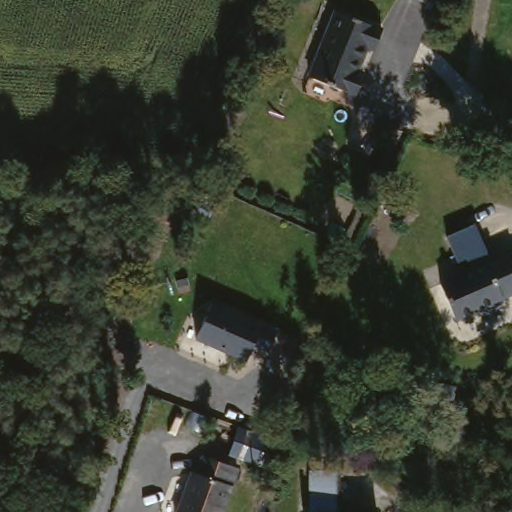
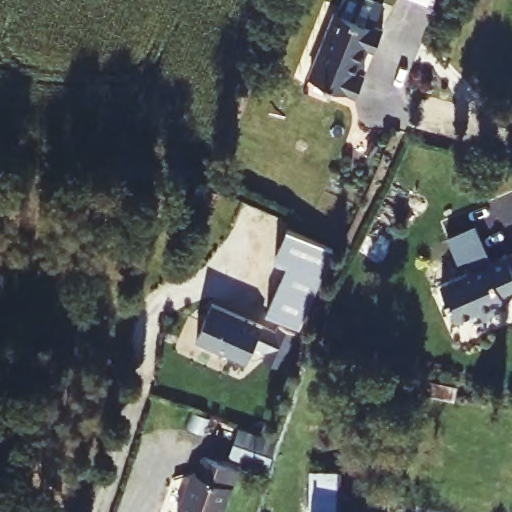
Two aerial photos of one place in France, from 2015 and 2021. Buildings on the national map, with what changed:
unchanged [(351,71),(357,73),(349,92),(303,71),(332,8),(377,28),(370,46),(362,43),(351,71)]
unchanged [(445,236),(472,224),(490,259),(463,275),(445,236)]
new [(289,262),(276,255),(287,228),(336,247),(302,326),(267,312),(289,262)]
unchanged [(504,296),(502,303),(501,305),(503,310),(487,319),(481,308),(459,321),(440,288),(503,252),(512,247),(512,291),(504,296)]
unchanged [(212,301),(260,321),(277,330),(270,351),(254,345),(247,361),(196,338),(212,301)]
unchanged [(217,512),(177,512),(172,509),(192,466),(197,469),(205,454),(236,469),(217,512)]
unchanged [(337,471),(337,512),(310,512),(309,472),(337,471)]

